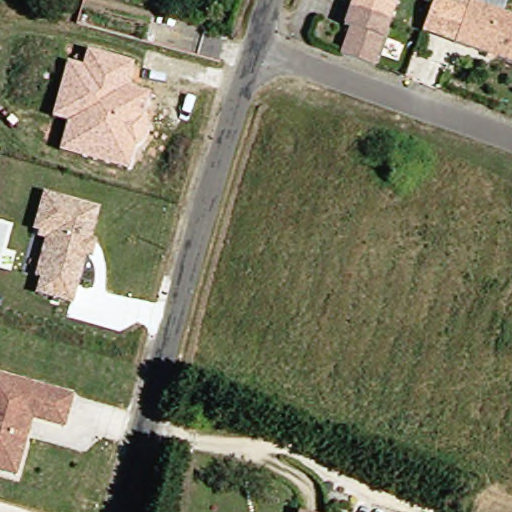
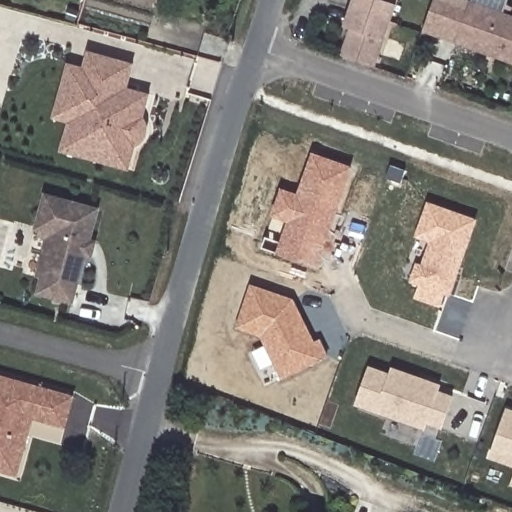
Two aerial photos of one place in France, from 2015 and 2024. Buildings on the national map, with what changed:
unchanged [(341,56),(351,28),(345,26),(351,9),(354,0),(398,0),(390,23),(375,68),(358,61),(341,56)]
unchanged [(423,31),(424,29),(434,0),(467,0),(470,1),(455,43),(423,31)]
unchanged [(512,16),(512,64),(455,43),(470,1),(512,16)]
new [(133,62),(127,88),(147,93),(143,119),(146,125),(142,143),(133,148),(127,172),(58,151),(66,124),(51,120),(67,63),(82,66),(86,50),(133,62)]
new [(288,222),(271,216),(281,188),(297,193),(312,152),(353,166),(318,268),(277,252),(288,222)]
demolished [(390,173),(396,156),(406,160),(400,177),(390,173)]
unchanged [(47,239),(38,236),(40,230),(36,229),(45,195),(98,210),(89,241),(103,245),(99,259),(85,255),(72,303),(38,293),(42,279),(36,277),(47,239)]
new [(420,286),(410,282),(416,263),(422,265),(430,242),(415,237),(428,202),(478,220),(450,296),(445,294),(440,308),(413,298),(420,286)]
new [(261,337),(236,328),(251,284),(294,299),(315,341),(321,339),(330,358),(282,380),(261,337)]
new [(369,366),(390,373),(392,367),(442,384),(440,391),(454,396),(442,429),(427,423),(425,430),(355,405),(369,366)]
unchanged [(74,396),(65,427),(33,418),(28,434),(16,475),(0,470),(0,375),(74,396)]
new [(512,409),(512,464),(491,457),(507,407),(512,409)]

